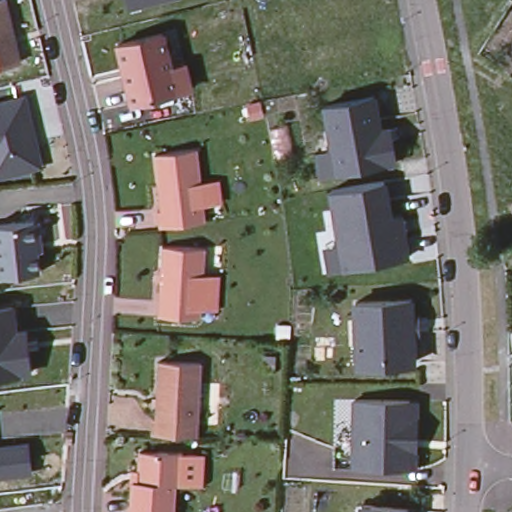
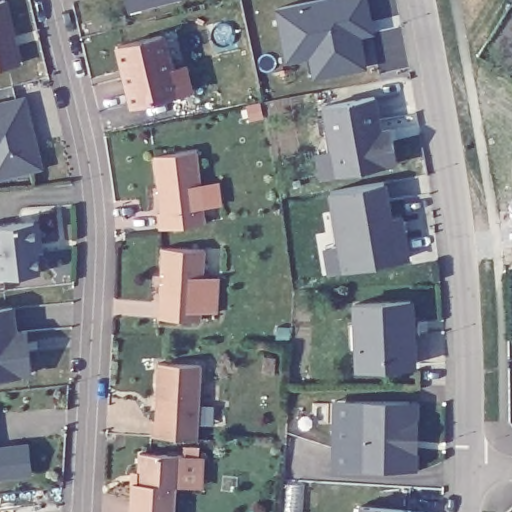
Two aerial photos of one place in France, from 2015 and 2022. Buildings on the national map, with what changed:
unchanged [(0,61),(0,0),(6,0),(20,56),(0,61)]
new [(367,0),(375,38),(362,42),(368,71),(312,82),(309,61),(284,66),(276,12),(331,0),(367,0)]
unchanged [(191,91),(176,94),(132,105),(118,46),(162,36),(170,70),(185,66),(191,91)]
unchanged [(391,141),(392,145),(395,164),(336,174),(325,111),(324,107),(373,97),(374,102),(380,136),(390,134),(391,141)]
unchanged [(24,99),(31,129),(26,130),(29,143),(36,147),(40,166),(0,176),(0,104),(24,99)]
new [(258,105),(261,118),(249,121),(246,107),(258,105)]
unchanged [(196,151),(205,223),(159,229),(158,213),(161,212),(154,156),(196,151)]
unchanged [(403,232),(408,257),(344,267),(340,243),(331,191),(384,182),(390,219),(401,217),(403,232)]
unchanged [(33,221),(34,224),(39,227),(40,236),(36,241),(39,272),(0,276),(0,225),(33,221)]
unchanged [(163,313),(167,243),(210,246),(206,316),(163,313)]
unchanged [(355,303),(411,301),(412,318),(418,318),(419,333),(412,333),(413,365),(358,367),(357,347),(356,322),(355,303)]
unchanged [(15,333),(25,332),(28,351),(30,374),(0,377),(0,310),(13,309),(15,333)]
unchanged [(150,420),(153,420),(156,362),(198,365),(194,437),(149,435),(150,420)]
unchanged [(411,396),(410,441),(416,442),(416,463),(355,462),(356,395),(411,396)]
unchanged [(27,440),(30,468),(0,472),(0,443),(27,440)]
unchanged [(183,455),(181,486),(175,486),(173,512),(130,512),(132,482),(138,482),(140,453),(183,455)]
unchanged [(406,512),(358,512),(359,505),(368,506),(407,511),(406,512)]

